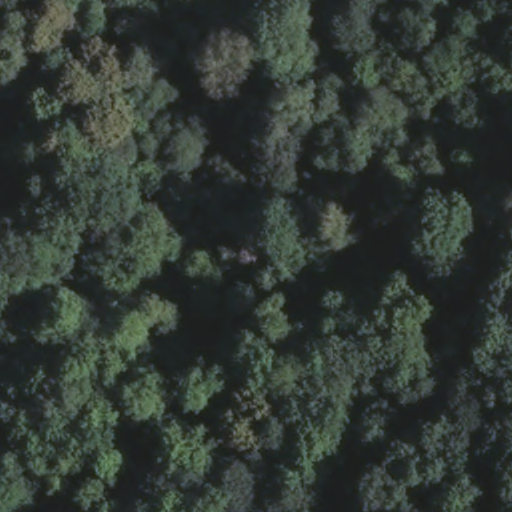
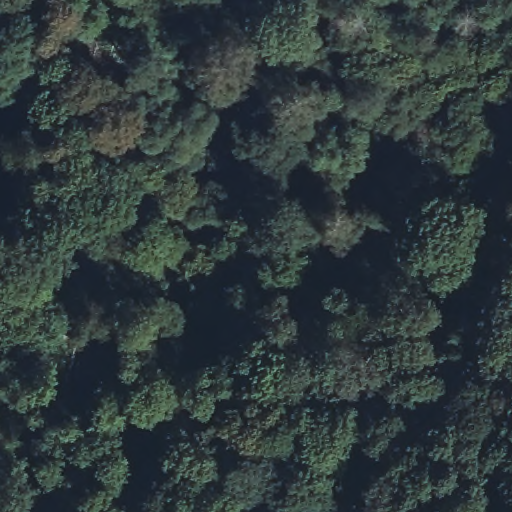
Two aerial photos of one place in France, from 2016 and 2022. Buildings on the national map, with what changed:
unchanged [(170,225),(179,246),(158,255),(138,210),(160,201),(170,225)]

